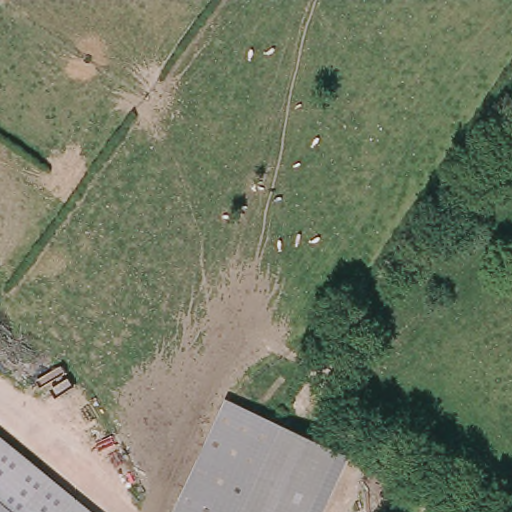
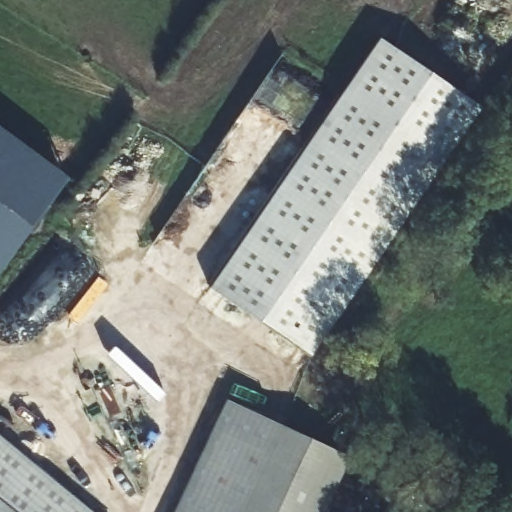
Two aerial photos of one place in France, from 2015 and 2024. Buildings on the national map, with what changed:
new [(380,38),(483,107),(447,158),(347,91),(380,38)]
new [(347,91),(447,158),(312,358),(212,290),(347,91)]
new [(0,270),(0,131),(63,177),(0,270)]
unchanged [(343,453),(318,512),(186,512),(236,406),(279,425),(292,430),(323,444),(343,453)]
unchanged [(0,512),(0,443),(84,512),(0,512)]

